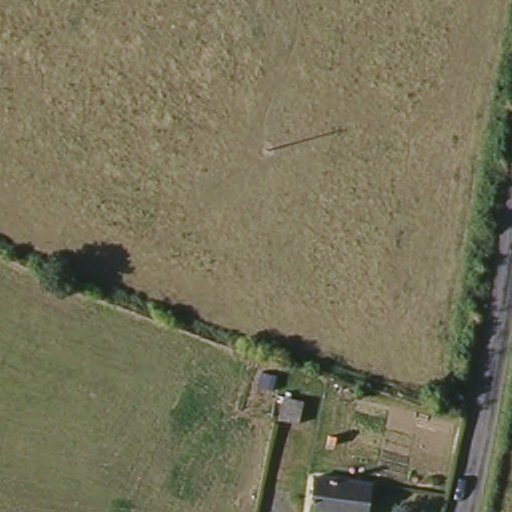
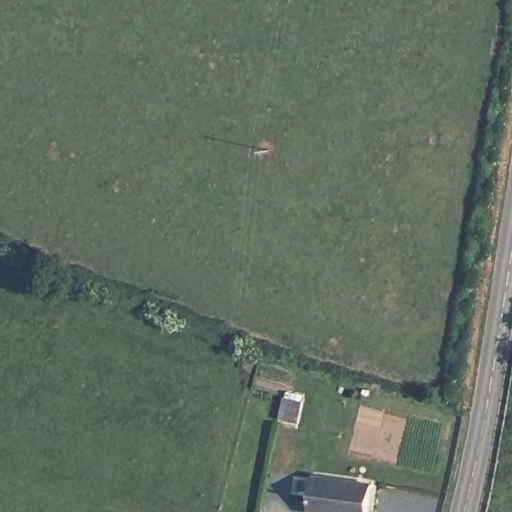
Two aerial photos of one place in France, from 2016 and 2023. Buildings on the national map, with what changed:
unchanged [(298,424),(281,421),(286,398),(303,402),(298,424)]
unchanged [(335,450),(328,449),(329,436),(338,437),(335,450)]
unchanged [(363,512),(330,512),(306,509),(309,474),(367,481),(363,512)]

